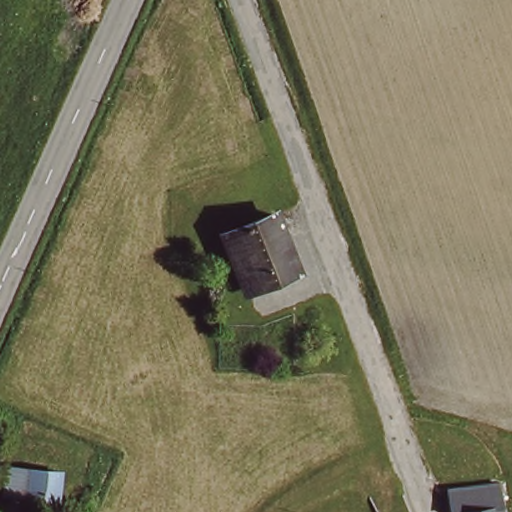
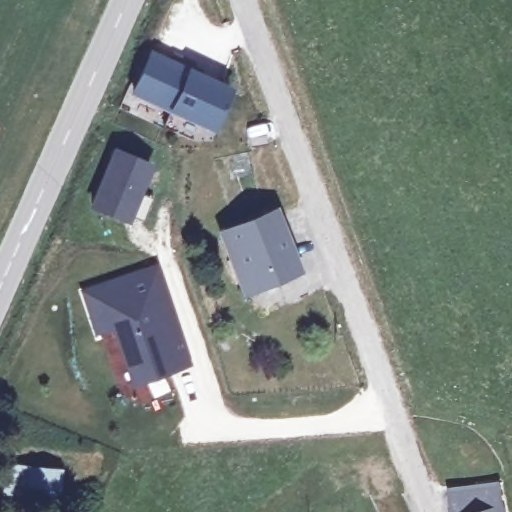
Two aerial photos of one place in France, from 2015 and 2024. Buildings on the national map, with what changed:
new [(149,55),(227,90),(210,129),(132,93),(149,55)]
new [(112,145),(151,162),(140,191),(145,196),(128,225),(87,207),(112,145)]
unchanged [(275,206),(297,263),(252,281),(237,245),(231,246),(224,226),(275,206)]
new [(130,388),(109,330),(93,336),(76,290),(157,263),(191,364),(130,388)]
unchanged [(62,465),(60,486),(29,483),(28,489),(6,486),(9,460),(62,465)]
unchanged [(509,512),(457,512),(454,482),(502,475),(509,512)]

